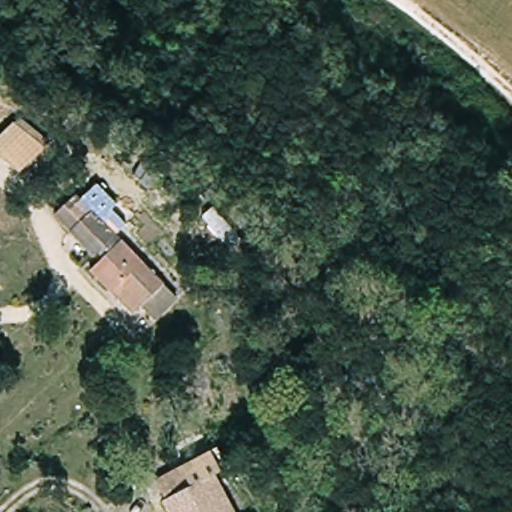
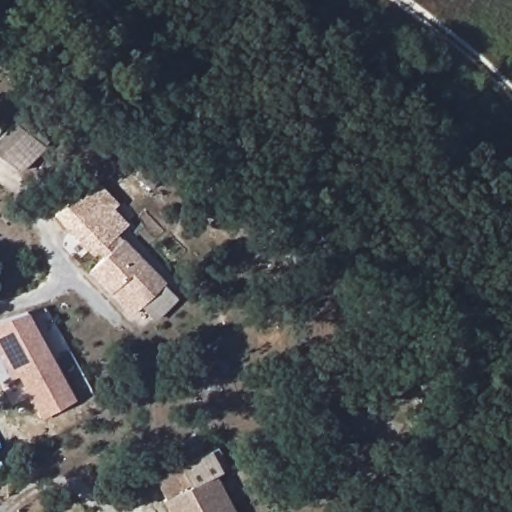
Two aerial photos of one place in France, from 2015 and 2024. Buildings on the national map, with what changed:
unchanged [(0,154),(0,138),(15,122),(44,149),(21,173),(0,154)]
unchanged [(58,216),(79,197),(122,243),(100,262),(58,216)]
unchanged [(103,304),(106,301),(84,276),(100,262),(122,243),(124,241),(165,287),(180,303),(155,325),(142,310),(123,327),(103,304)]
new [(28,312),(77,400),(42,419),(18,376),(12,380),(0,359),(0,321),(28,312)]
unchanged [(217,450),(227,471),(217,476),(235,512),(169,512),(154,483),(217,450)]

